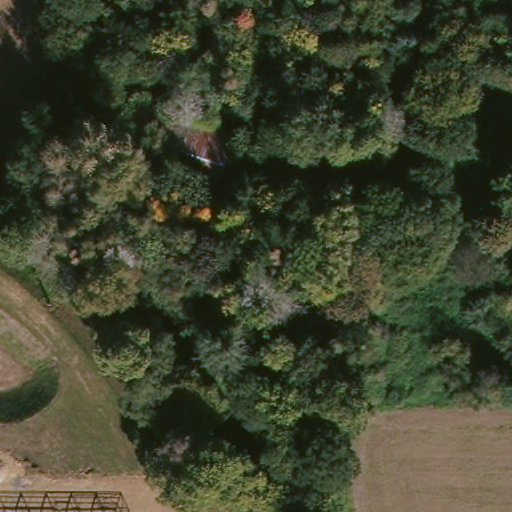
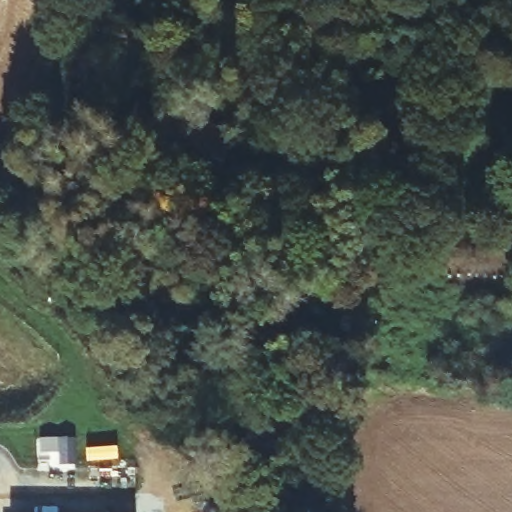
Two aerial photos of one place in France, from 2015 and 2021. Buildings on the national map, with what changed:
unchanged [(117,170),(131,110),(227,138),(212,196),(117,170)]

